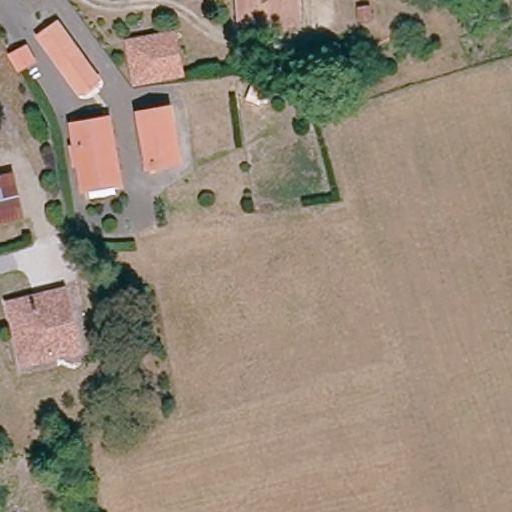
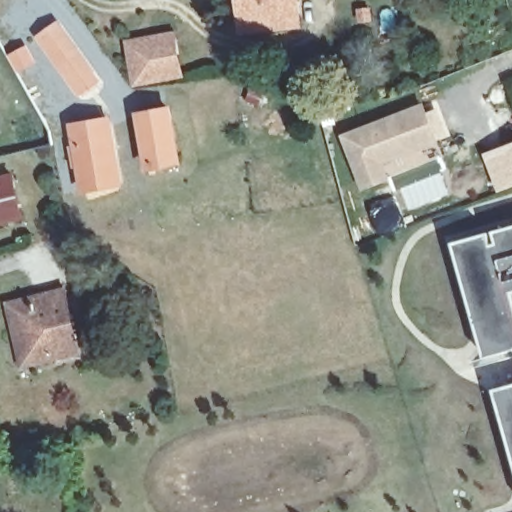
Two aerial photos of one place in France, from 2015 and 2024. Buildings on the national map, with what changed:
unchanged [(297,25),(238,29),(236,0),(295,0),(297,25)]
unchanged [(87,72),(71,84),(38,38),(54,26),(87,72)]
unchanged [(169,30),(178,72),(130,83),(121,40),(169,30)]
unchanged [(18,55),(25,68),(12,75),(5,62),(18,55)]
new [(438,140),(384,161),(390,176),(362,188),(341,133),(423,101),(438,140)]
unchanged [(166,109),(177,163),(147,169),(136,115),(166,109)]
unchanged [(79,193),(75,175),(64,124),(100,116),(111,167),(115,185),(79,193)]
new [(483,152),(512,141),(512,186),(498,190),(483,152)]
demolished [(208,167),(210,180),(163,189),(161,175),(208,167)]
unchanged [(9,178),(20,219),(0,225),(0,180),(9,178)]
new [(454,241),(512,224),(512,289),(512,347),(486,353),(454,241)]
unchanged [(56,285),(74,358),(20,371),(4,297),(56,285)]
new [(512,382),(512,442),(496,386),(512,382)]

